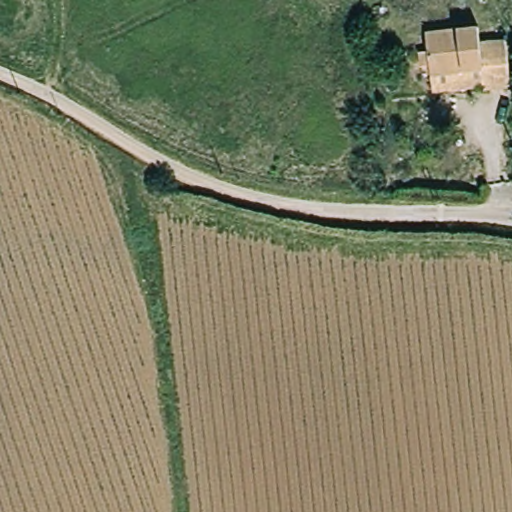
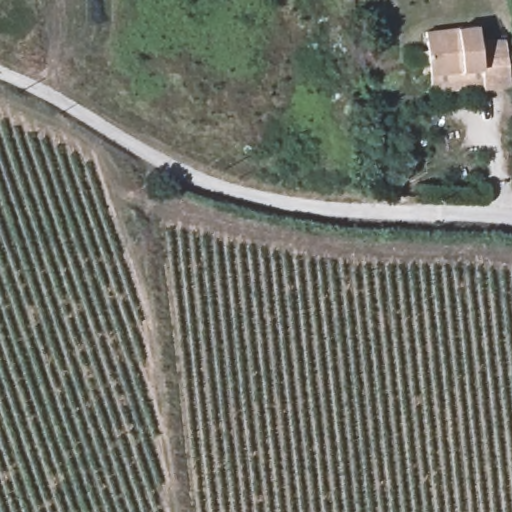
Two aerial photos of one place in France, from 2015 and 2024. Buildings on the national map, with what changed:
unchanged [(480,59),(504,56),(511,99),(485,102),(480,85),(431,90),(424,46),(477,41),(480,59)]

